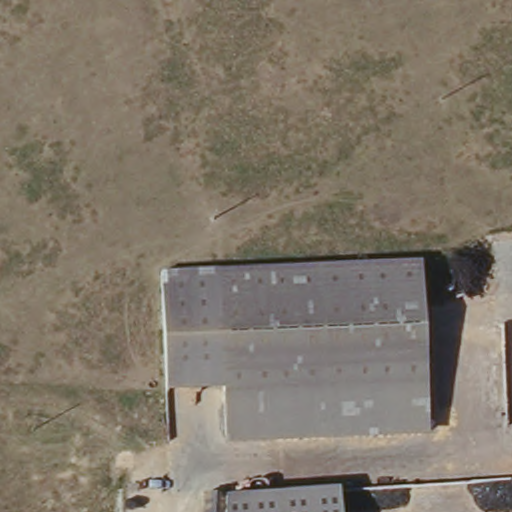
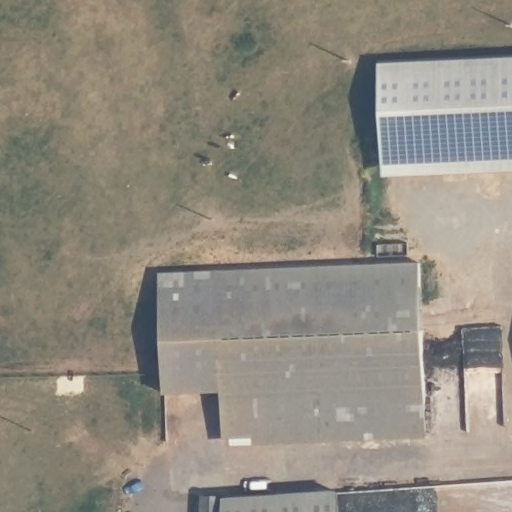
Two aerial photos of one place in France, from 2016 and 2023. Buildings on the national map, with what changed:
new [(512,51),(512,170),(383,175),(388,54),(512,51)]
unchanged [(224,392),(215,274),(416,260),(426,384),(225,398),(224,392)]
unchanged [(215,274),(224,392),(167,397),(157,278),(215,274)]
unchanged [(225,398),(426,384),(429,426),(227,440),(225,398)]
unchanged [(336,490),(337,512),(221,512),(221,499),(336,490)]
unchanged [(221,495),(221,499),(221,512),(194,512),(194,496),(221,495)]

